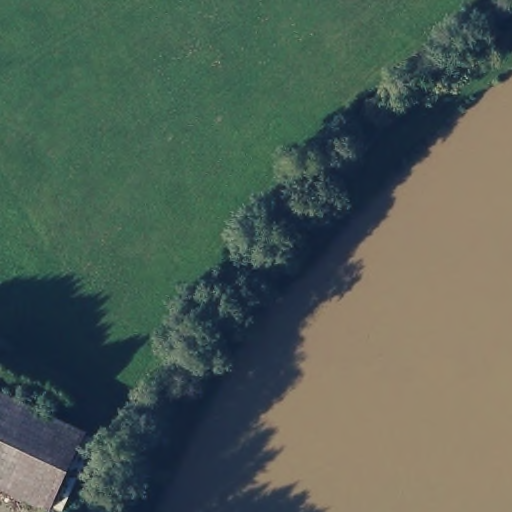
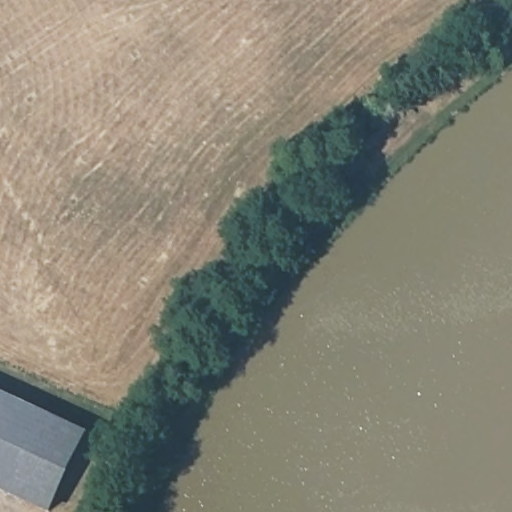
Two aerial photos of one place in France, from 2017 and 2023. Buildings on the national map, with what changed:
unchanged [(49,501),(0,478),(0,382),(85,422),(49,501)]

